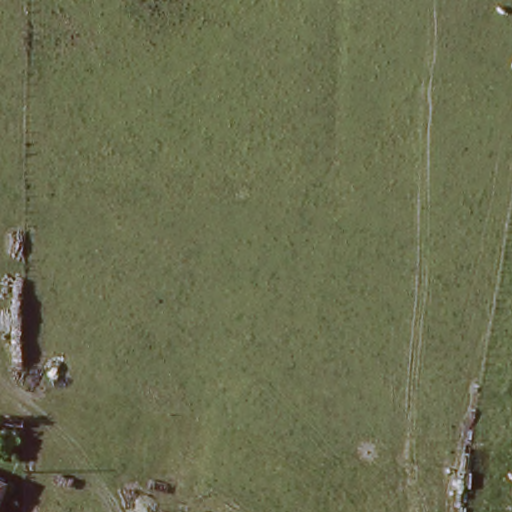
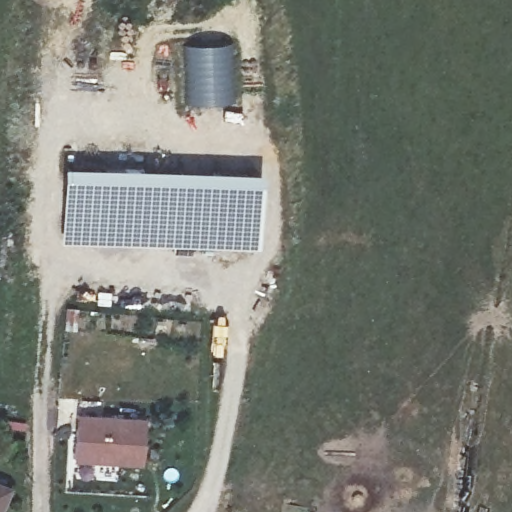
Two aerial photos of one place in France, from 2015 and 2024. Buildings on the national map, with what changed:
new [(231,41),(235,102),(185,104),(183,42),(231,41)]
new [(62,164),(260,169),(258,247),(209,247),(60,244),(62,164)]
new [(74,462),(77,414),(144,417),(142,465),(74,462)]
unchanged [(1,488),(0,491),(0,488),(1,488)]

